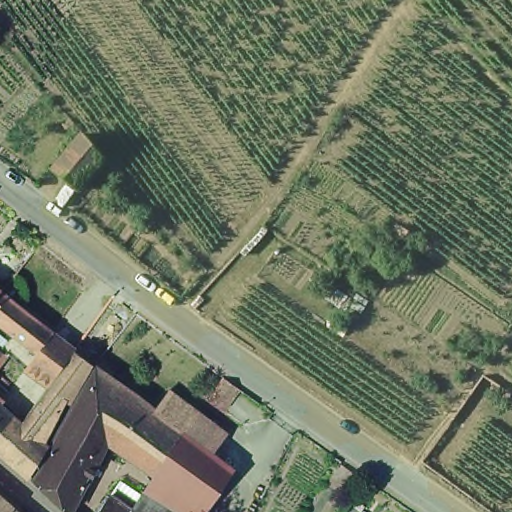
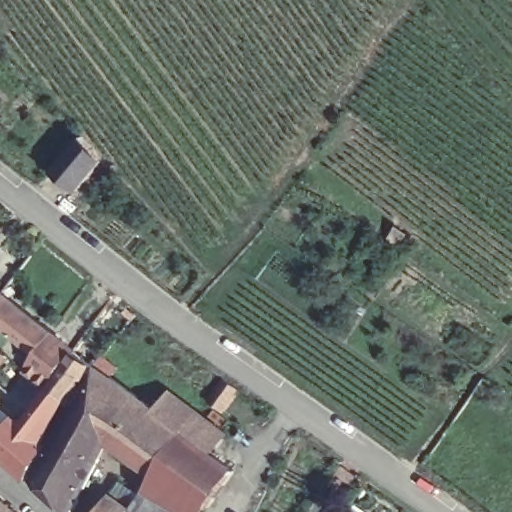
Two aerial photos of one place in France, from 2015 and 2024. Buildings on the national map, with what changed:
unchanged [(54,182),(83,146),(104,168),(78,201),(54,182)]
unchanged [(0,303),(0,294),(4,298),(0,303)]
unchanged [(41,359),(24,346),(0,327),(0,309),(7,300),(56,337),(41,359)]
unchanged [(54,392),(30,374),(41,359),(56,337),(79,356),(54,392)]
unchanged [(0,376),(0,350),(12,361),(0,376)]
unchanged [(15,418),(18,421),(25,428),(54,392),(79,356),(95,369),(74,409),(68,406),(45,446),(51,450),(34,482),(33,483),(0,454),(0,406),(6,411),(15,418)]
unchanged [(216,458),(239,476),(213,512),(181,512),(180,511),(179,512),(139,512),(158,481),(113,448),(101,469),(64,435),(78,407),(98,371),(106,360),(120,372),(114,382),(133,394),(159,415),(216,458)]
unchanged [(238,387),(221,410),(209,401),(226,378),(238,387)]
unchanged [(174,396),(231,439),(216,458),(159,415),(174,396)]
unchanged [(101,469),(79,512),(68,512),(37,485),(64,435),(101,469)]
unchanged [(15,512),(0,512),(0,492),(18,508),(15,512)]
unchanged [(131,511),(133,512),(107,512),(115,500),(131,511)]
unchanged [(15,512),(18,508),(23,512),(15,512)]
unchanged [(181,512),(179,512),(180,511),(181,512)]

